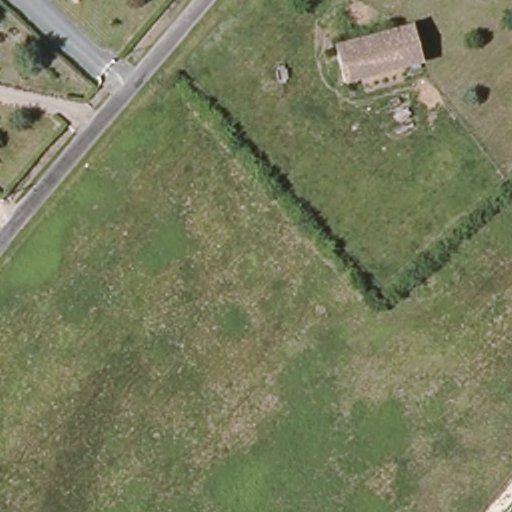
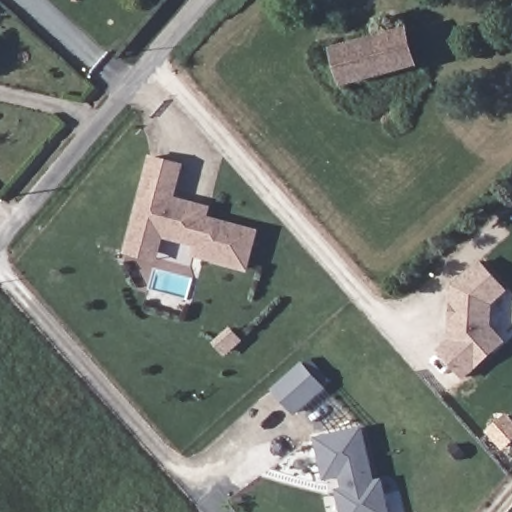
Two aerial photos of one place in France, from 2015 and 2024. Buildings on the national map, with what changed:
unchanged [(333,53),(415,31),(425,70),(343,92),(333,53)]
new [(249,272),(191,257),(194,246),(164,238),(158,262),(125,254),(151,155),(185,164),(176,197),(213,206),(210,216),(260,230),(249,272)]
new [(487,353),(460,378),(435,351),(447,340),(450,285),(477,262),(502,290),(488,303),(487,326),(500,342),(487,353)]
new [(299,363),(320,387),(291,413),(270,390),(299,363)]
new [(342,487),(340,477),(324,481),(315,437),(364,426),(376,480),(383,477),(391,512),(341,512),(336,488),(342,487)]

